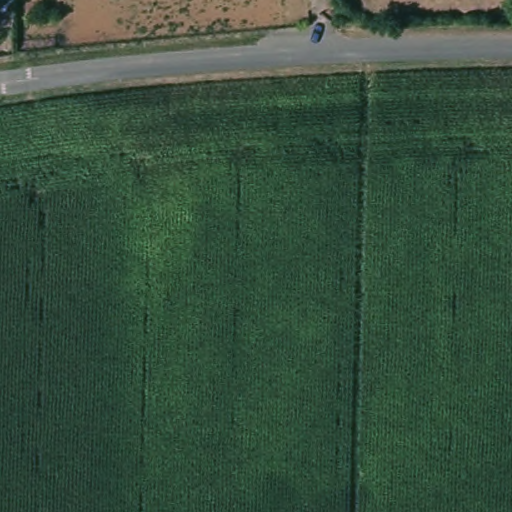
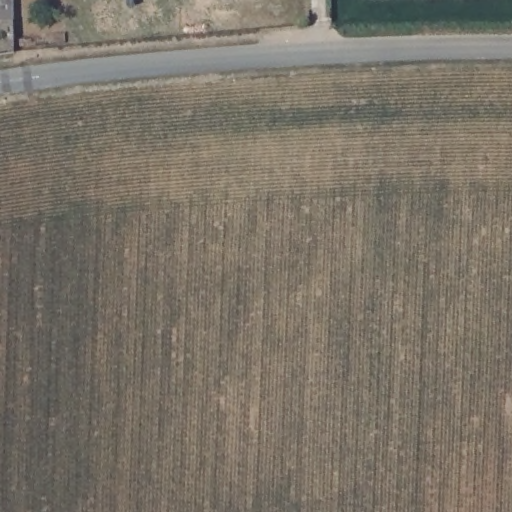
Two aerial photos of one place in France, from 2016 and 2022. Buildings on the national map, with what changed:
unchanged [(0,20),(0,0),(11,0),(11,20),(0,20)]

